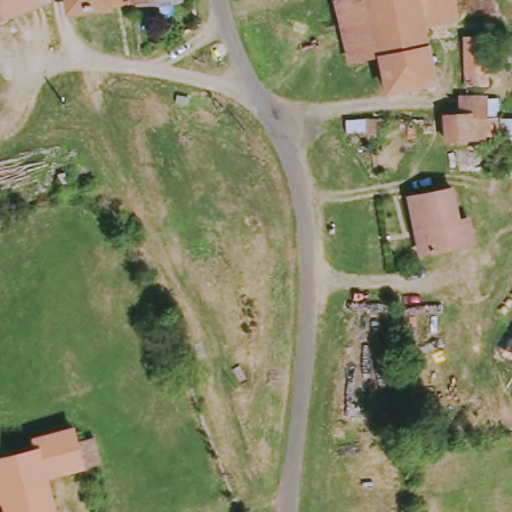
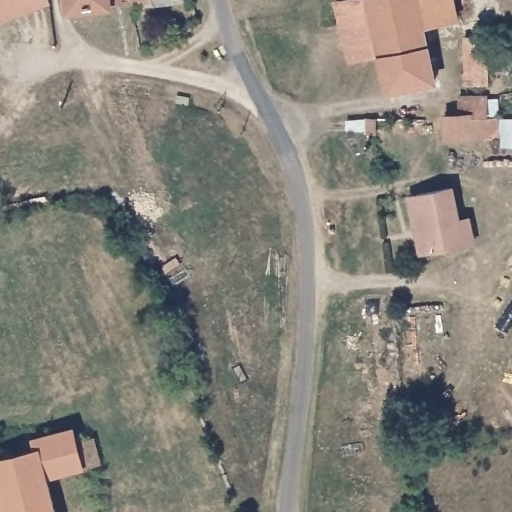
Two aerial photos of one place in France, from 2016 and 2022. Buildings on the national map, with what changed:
unchanged [(0,0),(40,0),(0,16),(0,0)]
unchanged [(108,5),(91,7),(91,17),(78,18),(78,8),(66,8),(66,0),(108,0),(108,5)]
unchanged [(166,7),(165,4),(125,7),(124,0),(189,0),(190,5),(166,7)]
unchanged [(352,0),(359,0),(372,59),(343,66),(329,6),(336,3),(352,0)]
unchanged [(452,25),(416,31),(425,84),(379,95),(372,59),(359,0),(447,0),(452,25)]
unchanged [(482,87),(459,86),(458,37),(483,37),(482,87)]
unchanged [(438,142),(436,117),(452,117),(453,99),(482,100),(482,121),(491,121),(492,126),(491,142),(438,142)]
unchanged [(512,119),(512,152),(511,152),(512,119)]
unchanged [(453,219),(462,218),(465,243),(415,251),(403,195),(447,187),(453,219)]
unchanged [(40,476),(30,448),(28,440),(70,430),(73,442),(88,439),(93,461),(80,466),(40,476)]
unchanged [(0,457),(30,448),(40,476),(51,512),(0,512),(0,511),(0,457)]

